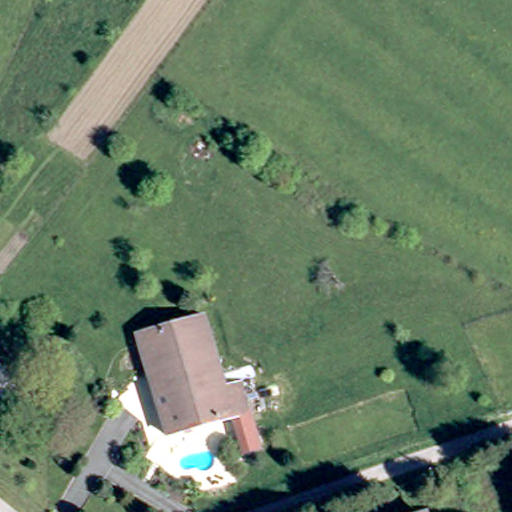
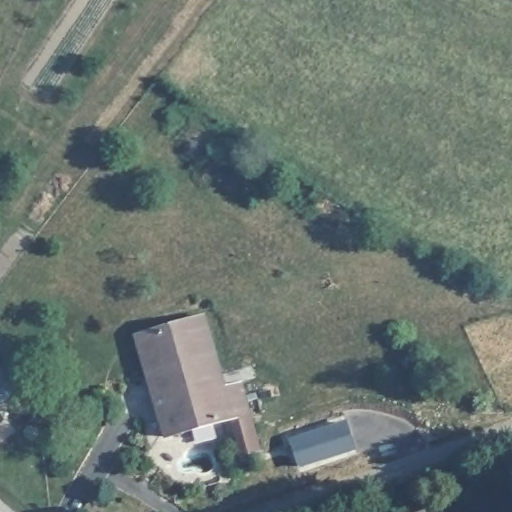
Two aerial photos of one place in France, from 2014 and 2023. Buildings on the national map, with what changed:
unchanged [(143,337),(208,318),(225,377),(159,394),(143,337)]
unchanged [(0,410),(0,367),(20,396),(0,410)]
unchanged [(245,387),(253,414),(173,435),(159,394),(225,377),(228,390),(245,387)]
unchanged [(242,456),(233,420),(253,414),(263,451),(242,456)]
new [(348,418),(360,449),(298,469),(288,438),(348,418)]

